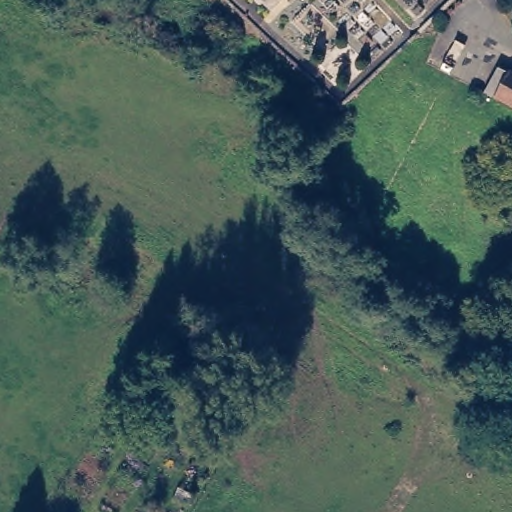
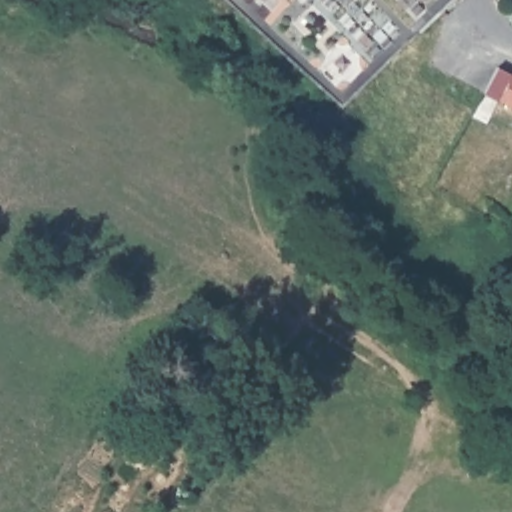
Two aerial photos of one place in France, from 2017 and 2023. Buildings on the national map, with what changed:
unchanged [(485,91),(497,66),(508,72),(512,74),(512,105),(496,97),(485,91)]
unchanged [(191,370),(158,424),(113,386),(147,337),(191,370)]

